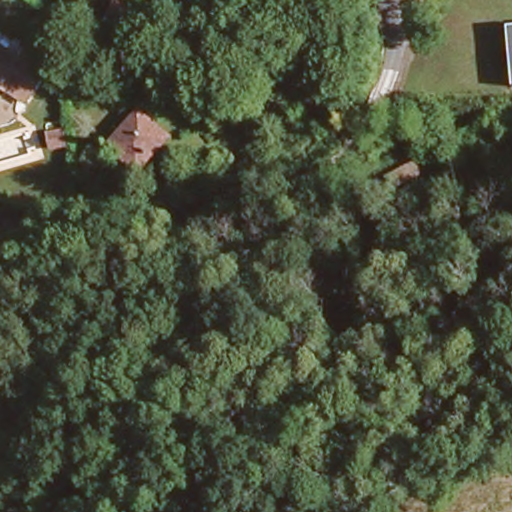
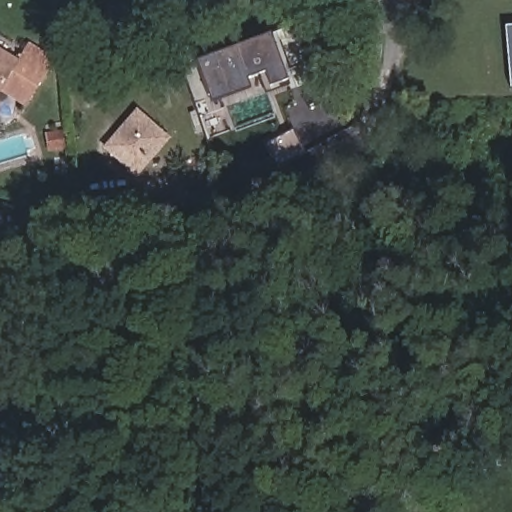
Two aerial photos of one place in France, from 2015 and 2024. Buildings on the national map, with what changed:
unchanged [(503,24),(512,24),(512,85),(508,85),(503,24)]
new [(270,33),(287,78),(270,84),(265,71),(245,78),(249,87),(211,101),(196,61),(270,33)]
unchanged [(36,58),(42,49),(49,53),(65,64),(52,83),(42,98),(20,82),(13,92),(0,85),(0,44),(11,51),(15,44),(36,58)]
unchanged [(162,125),(137,166),(105,140),(134,103),(162,125)]
new [(270,143),(293,129),(300,132),(300,143),(289,166),(275,159),(270,143)]
unchanged [(375,158),(413,168),(403,207),(363,197),(375,158)]

